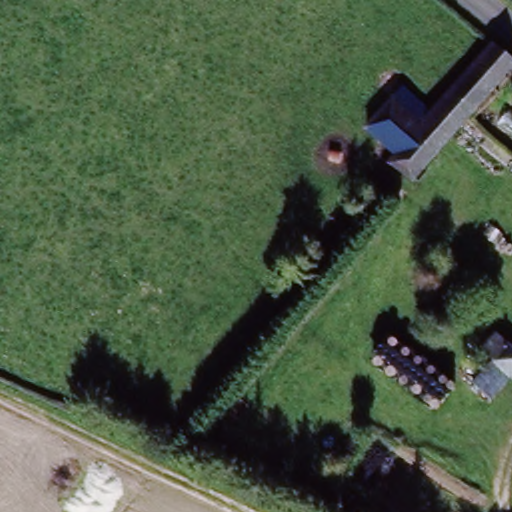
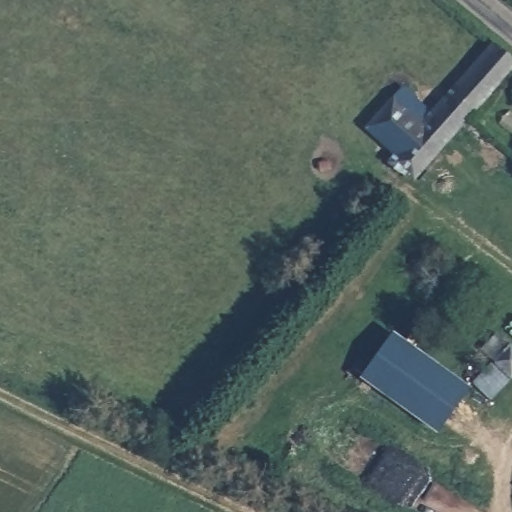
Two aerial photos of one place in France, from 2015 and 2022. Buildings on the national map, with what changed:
unchanged [(428,117),(495,46),(512,61),(512,72),(413,182),(387,161),(396,151),(428,117)]
unchanged [(428,117),(396,151),(365,123),(395,90),(428,117)]
unchanged [(512,346),(512,374),(512,375),(484,349),(500,335),(512,346)]
new [(385,341),(461,379),(447,426),(372,379),(385,341)]

